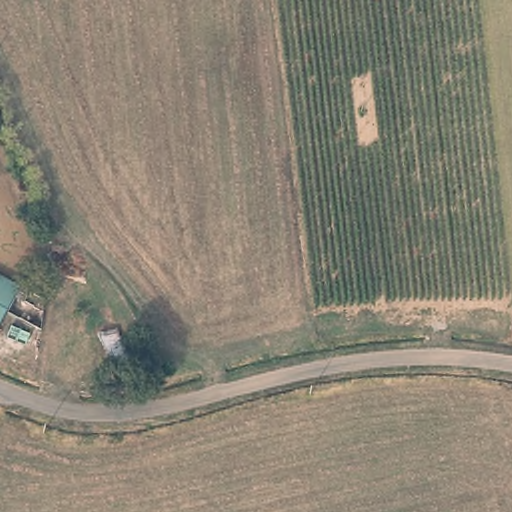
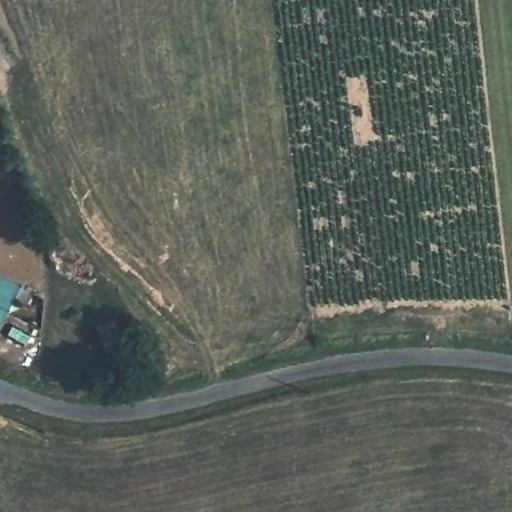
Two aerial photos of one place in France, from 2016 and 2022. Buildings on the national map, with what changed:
unchanged [(0,284),(0,276),(4,279),(0,284)]
unchanged [(0,324),(0,284),(4,279),(21,289),(0,324)]

